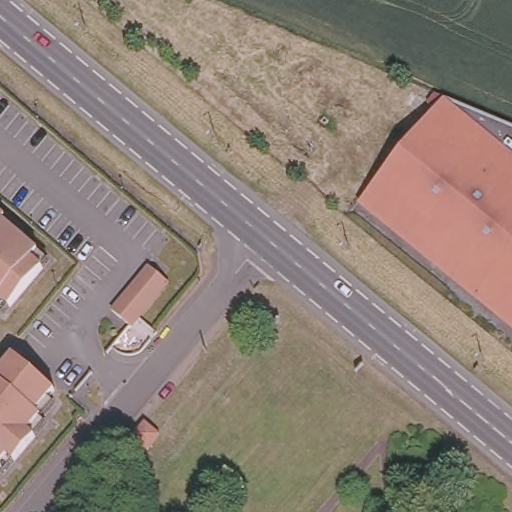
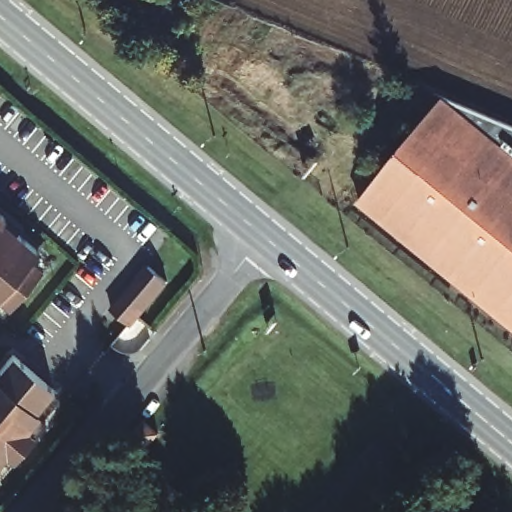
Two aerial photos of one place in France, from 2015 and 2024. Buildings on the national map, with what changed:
unchanged [(391,162),(435,109),(426,101),(434,91),(435,91),(512,124),(512,327),(358,203),(391,162)]
unchanged [(5,216),(0,222),(0,211),(5,216)]
unchanged [(13,235),(16,231),(38,249),(31,257),(43,266),(10,305),(0,296),(0,223),(13,235)]
unchanged [(168,279),(131,324),(112,308),(150,264),(168,279)]
unchanged [(55,387),(36,409),(41,413),(28,428),(35,434),(15,459),(8,453),(0,462),(0,369),(13,353),(55,387)]
unchanged [(145,420),(160,433),(147,447),(133,435),(145,420)]

